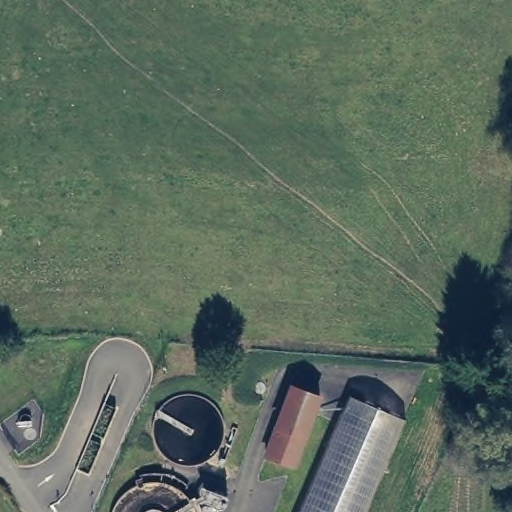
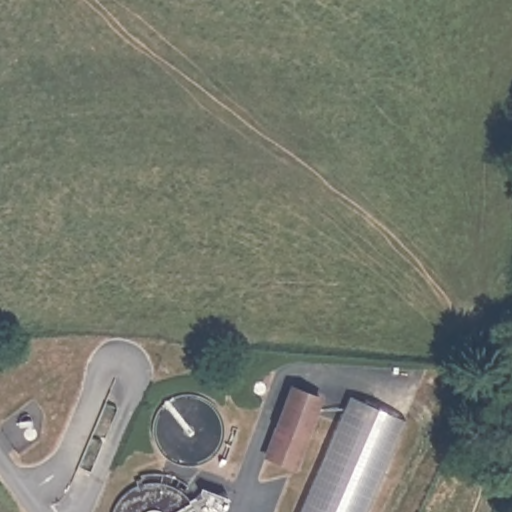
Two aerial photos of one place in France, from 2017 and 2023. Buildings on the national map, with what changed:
unchanged [(295,388),(322,397),(296,467),(268,457),(295,388)]
unchanged [(366,512),(298,512),(349,393),(407,418),(366,512)]
unchanged [(19,428),(18,427),(18,426),(18,425),(19,425),(19,424),(20,423),(20,422),(21,421),(22,420),(23,420),(24,420),(25,420),(26,420),(27,420),(28,421),(29,422),(30,422),(30,423),(30,424),(30,425),(31,425),(31,426),(31,427),(30,427),(30,428),(30,429),(30,430),(29,430),(28,431),(27,431),(27,432),(26,432),(25,432),(24,432),(23,432),(22,432),(21,431),(20,431),(20,430),(20,429),(19,429),(19,428)]
unchanged [(23,439),(23,438),(24,437),(24,436),(25,436),(25,435),(26,435),(26,434),(27,434),(28,434),(29,434),(30,434),(31,434),(32,434),(33,435),(34,435),(34,436),(35,436),(35,437),(35,438),(35,439),(35,440),(35,441),(35,442),(35,443),(34,443),(34,444),(33,444),(32,445),(31,445),(30,446),(29,446),(28,446),(27,445),(26,445),(25,444),(25,443),(24,443),(23,442),(23,441),(23,440),(23,439)]
unchanged [(216,497),(217,497),(218,497),(218,496),(219,496),(220,496),(221,496),(222,497),(223,497),(224,497),(225,498),(225,499),(226,499),(226,500),(227,501),(227,502),(227,503),(227,504),(227,505),(227,506),(227,507),(226,508),(225,509),(225,510),(224,510),(223,511),(222,511),(221,511),(220,512),(219,511),(218,511),(217,511),(216,511),(215,510),(214,509),(213,508),(213,507),(212,507),(212,506),(212,505),(212,504),(212,503),(212,502),(212,501),(213,501),(213,500),(213,499),(214,499),(215,499),(215,498),(216,497)]

